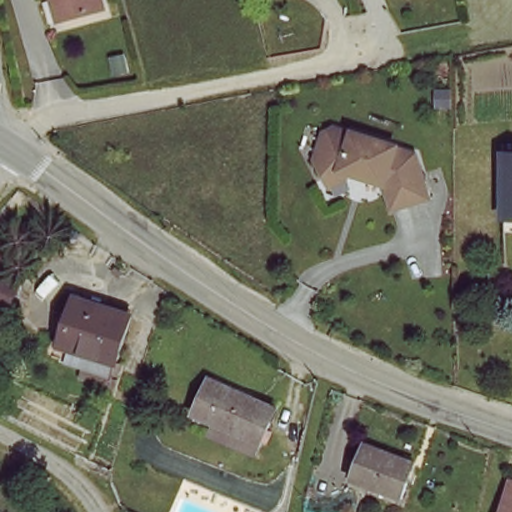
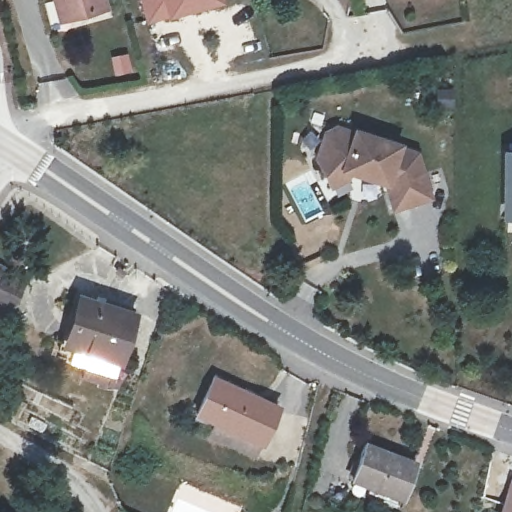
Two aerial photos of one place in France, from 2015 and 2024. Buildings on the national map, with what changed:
unchanged [(62,26),(54,0),(105,0),(108,12),(62,26)]
new [(222,3),(150,23),(144,0),(221,0),(222,3)]
unchanged [(327,178),(319,163),(324,144),(330,136),(338,131),(360,136),(388,146),(418,160),(427,200),(392,210),(385,187),(355,177),(352,178),(332,187),(327,178)]
unchanged [(505,216),(505,155),(512,156),(512,216),(505,216)]
unchanged [(0,279),(20,286),(15,301),(0,296),(0,279)]
unchanged [(70,342),(83,300),(135,317),(117,373),(58,354),(62,339),(70,342)]
unchanged [(275,408),(262,443),(200,421),(210,392),(239,401),(242,396),(275,408)]
unchanged [(352,481),(364,444),(413,465),(400,501),(352,481)]
unchanged [(512,479),(512,512),(497,512),(510,478),(512,479)]

